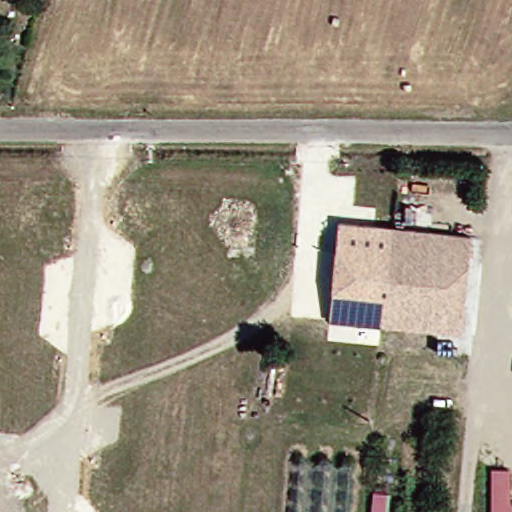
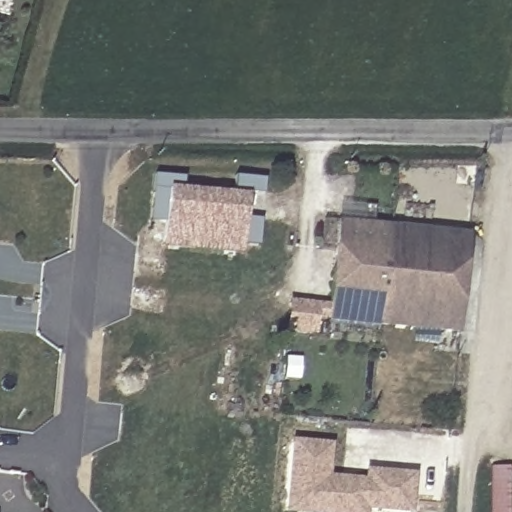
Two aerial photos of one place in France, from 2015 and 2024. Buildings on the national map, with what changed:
new [(169,195),(209,198),(204,246),(164,242),(169,195)]
new [(209,198),(248,202),(244,250),(204,246),(209,198)]
unchanged [(381,322),(392,227),(434,230),(436,216),(472,220),(470,235),(461,330),(381,322)]
unchanged [(381,326),(330,319),(341,221),(392,227),(381,322),(381,326)]
new [(330,319),(319,320),(317,335),(288,333),(289,300),(332,303),(330,319)]
new [(284,512),(289,441),(332,444),(329,477),(362,481),(364,471),(414,475),(410,512),(284,512)]
unchanged [(508,512),(489,512),(489,467),(508,467),(508,512)]

